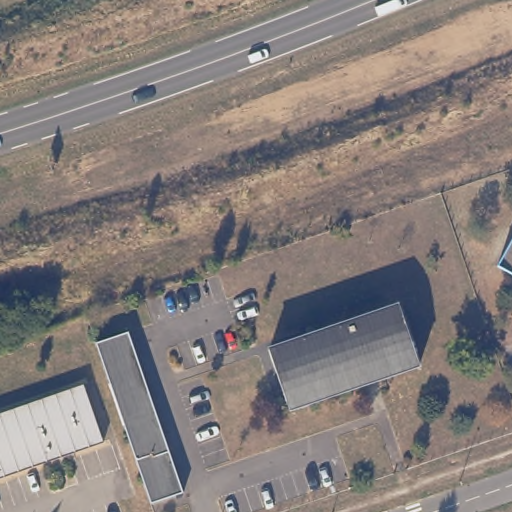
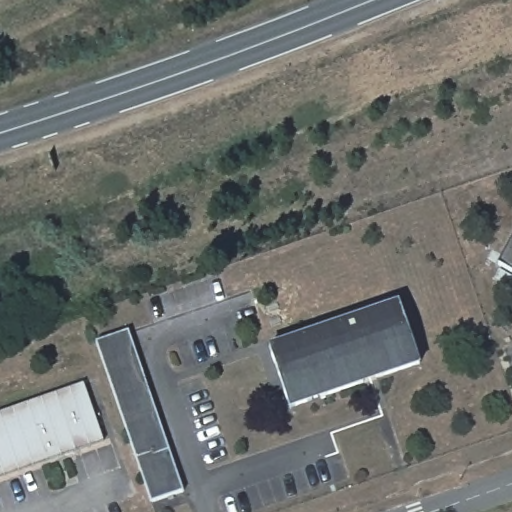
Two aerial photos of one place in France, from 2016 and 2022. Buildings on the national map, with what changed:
unchanged [(496,265),(512,237),(512,273),(496,265)]
unchanged [(419,358),(376,372),(375,370),(361,375),(362,377),(319,391),(319,389),(310,392),(311,395),(289,402),(282,382),(284,381),(282,375),(283,374),(279,361),(275,362),(268,342),(291,335),(292,337),(293,337),(293,338),(298,337),(297,335),(300,335),(299,332),(342,317),(343,320),(349,316),(351,315),(352,315),(353,315),(354,315),(355,315),(357,316),(356,312),(398,298),(419,358)]
unchanged [(133,346),(183,491),(150,502),(95,341),(127,330),(133,346)]
unchanged [(103,441),(0,476),(0,411),(83,382),(103,441)]

